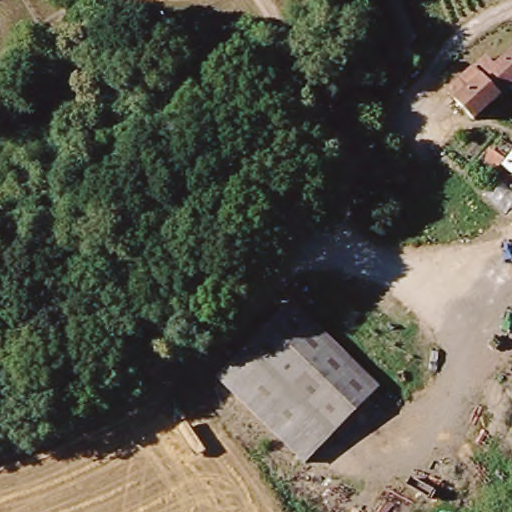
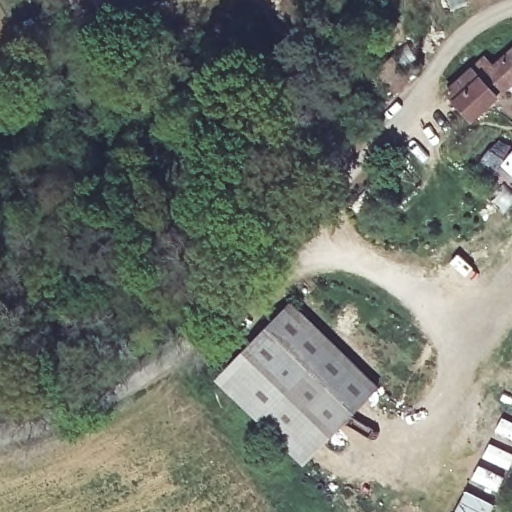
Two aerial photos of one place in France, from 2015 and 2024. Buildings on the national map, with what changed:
unchanged [(450,106),(462,95),(512,48),(512,92),(485,119),(476,128),(450,106)]
unchanged [(477,159),(489,146),(504,160),(491,173),(477,159)]
unchanged [(509,162),(512,159),(512,165),(509,162)]
unchanged [(305,468),(215,386),(217,383),(287,307),(377,387),(315,456),(305,468)]

